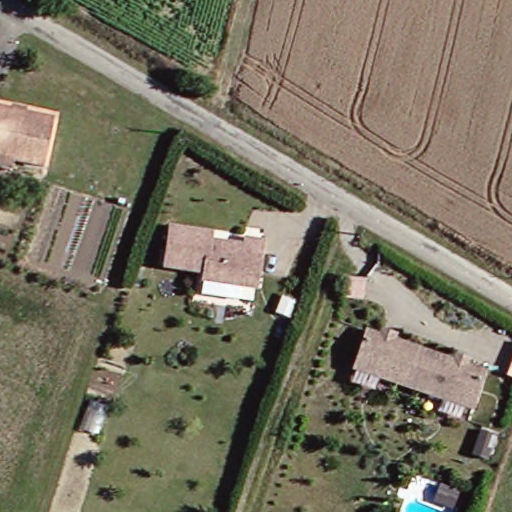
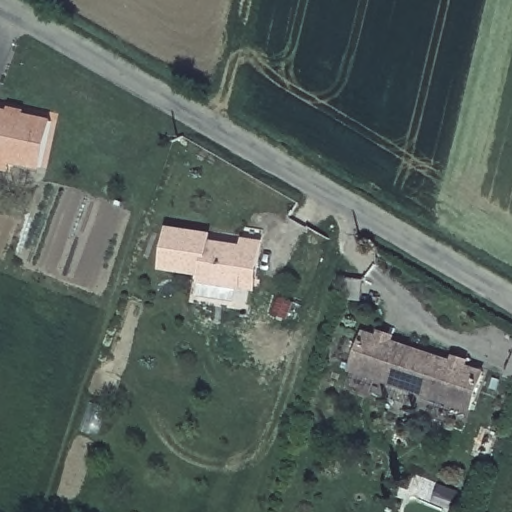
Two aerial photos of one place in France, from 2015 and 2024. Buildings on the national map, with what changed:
unchanged [(0,108),(11,111),(13,105),(34,110),(33,116),(63,123),(51,173),(20,165),(17,181),(0,177),(0,108)]
unchanged [(245,291),(242,306),(204,298),(209,276),(169,267),(176,230),(216,237),(215,245),(250,252),(251,244),(268,249),(262,282),(260,294),(245,291)]
unchanged [(368,331),(489,371),(478,410),(356,370),(368,331)]

